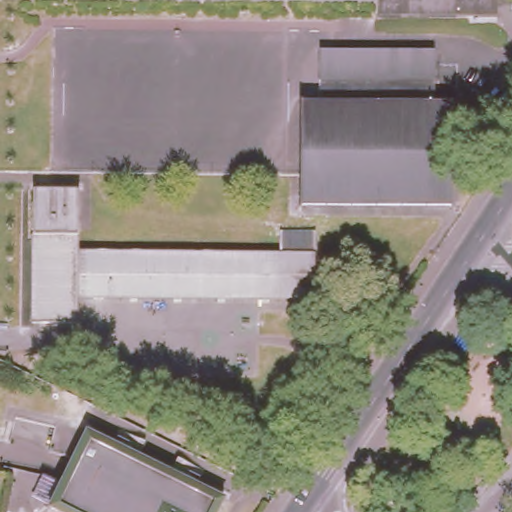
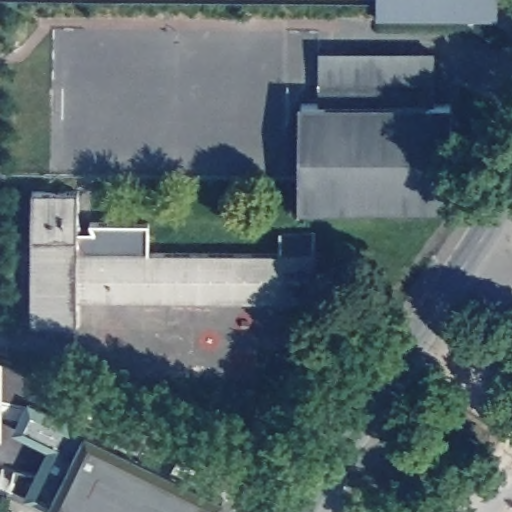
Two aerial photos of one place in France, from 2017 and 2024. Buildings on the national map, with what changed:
unchanged [(500,18),(382,18),(382,0),(500,0),(500,18)]
unchanged [(437,101),(455,102),(455,208),(452,208),(452,206),(305,205),(305,206),(302,206),(302,101),(322,100),(322,51),(347,51),(413,52),(437,52),(437,101)]
unchanged [(35,189),(82,189),(81,236),(35,235),(35,189)]
unchanged [(282,252),(283,231),(318,231),(317,299),(80,297),(80,250),(282,252)]
unchanged [(80,323),(35,322),(35,235),(81,236),(80,250),(80,297),(80,323)]
unchanged [(215,512),(48,512),(45,511),(82,434),(220,501),(215,512)]

